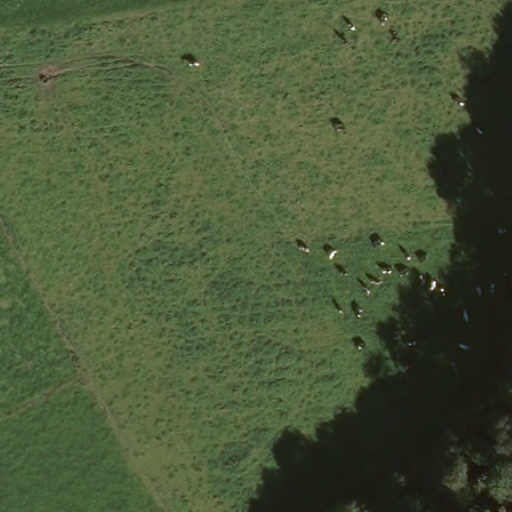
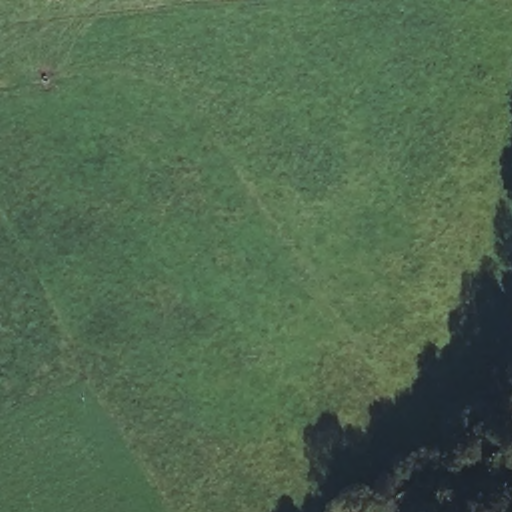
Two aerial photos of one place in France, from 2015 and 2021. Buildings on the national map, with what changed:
[]

